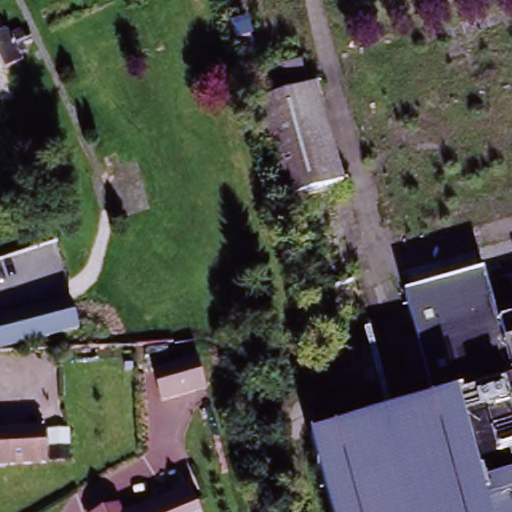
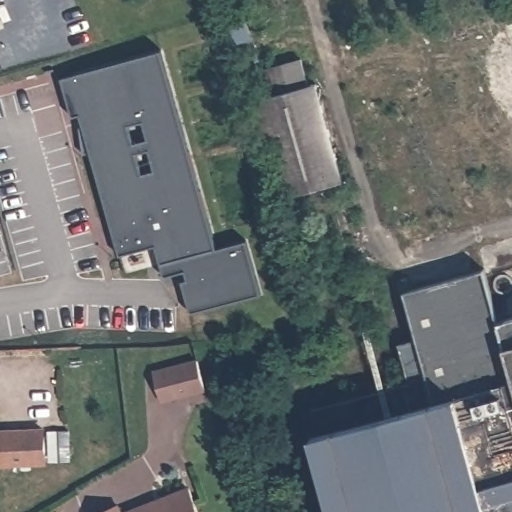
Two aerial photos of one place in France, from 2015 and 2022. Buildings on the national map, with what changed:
unchanged [(272,205),(228,31),(249,26),(262,73),(302,59),(309,85),(319,84),(346,184),(272,205)]
new [(168,62),(218,248),(246,240),(260,290),(193,308),(185,278),(190,277),(188,269),(168,274),(161,245),(126,255),(99,157),(93,159),(91,133),(95,132),(100,131),(98,120),(85,124),(74,87),(168,62)]
unchanged [(402,341),(417,336),(404,287),(486,264),(489,275),(511,269),(512,273),(512,512),(333,512),(312,433),(424,400),(402,341)]
demolished [(70,305),(79,333),(0,361),(0,323),(70,305)]
new [(204,365),(208,394),(163,401),(158,373),(204,365)]
unchanged [(44,425),(43,462),(0,464),(0,427),(44,425)]
unchanged [(124,510),(188,483),(199,512),(91,512),(91,511),(120,500),(124,510)]

